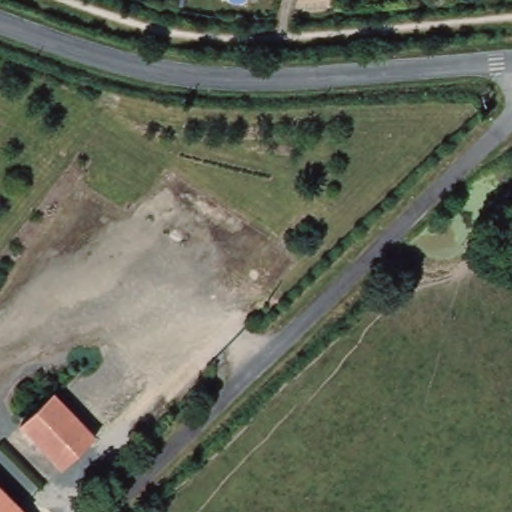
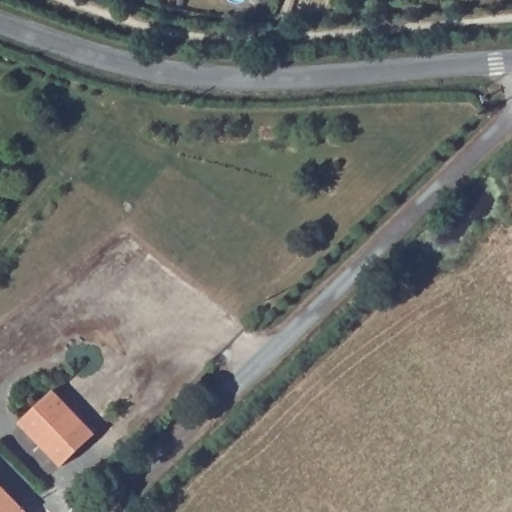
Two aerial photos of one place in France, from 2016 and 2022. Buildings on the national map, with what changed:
unchanged [(493,102),(488,105),(487,100),(491,98),(493,102)]
unchanged [(95,437),(62,470),(19,425),(53,393),(95,437)]
unchanged [(3,485),(10,491),(30,512),(0,512),(0,481),(3,485)]

